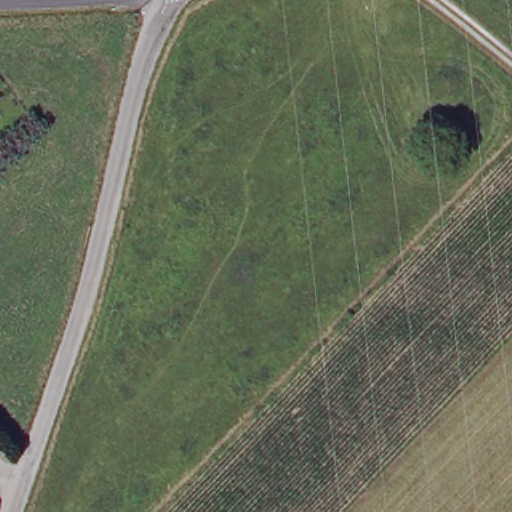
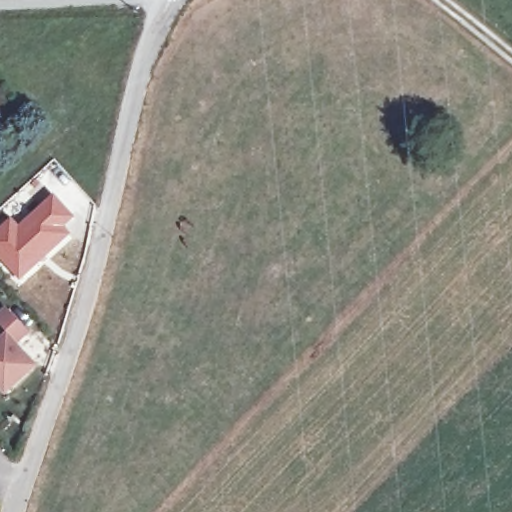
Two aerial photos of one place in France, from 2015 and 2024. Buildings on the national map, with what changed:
new [(11,216),(19,224),(53,193),(75,217),(66,226),(72,233),(19,281),(0,260),(0,226),(11,216)]
new [(8,313),(28,335),(15,346),(36,368),(8,394),(0,386),(0,319),(8,313)]

